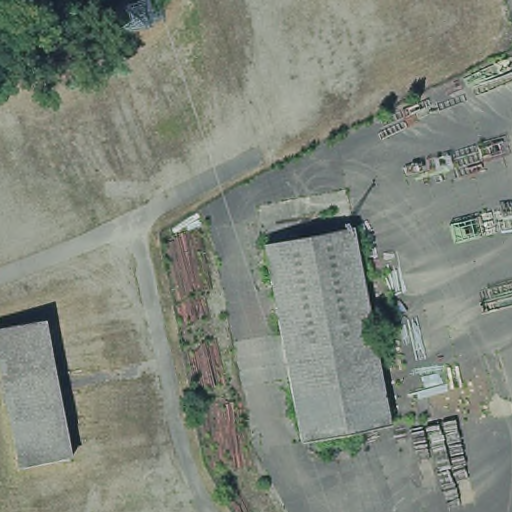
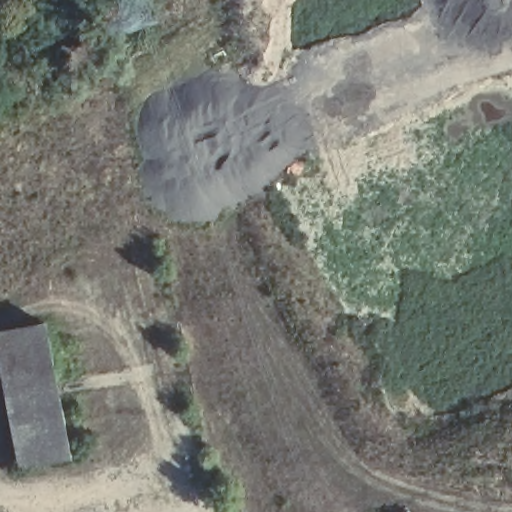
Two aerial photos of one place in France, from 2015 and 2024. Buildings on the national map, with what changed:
demolished [(266,252),(354,237),(386,437),(324,445),(274,298),(266,252)]
demolished [(274,298),(324,445),(300,448),(274,298)]
unchanged [(68,402),(17,413),(1,340),(0,332),(0,329),(25,325),(50,320),(68,402)]
unchanged [(17,413),(68,402),(79,455),(28,464),(17,413)]

